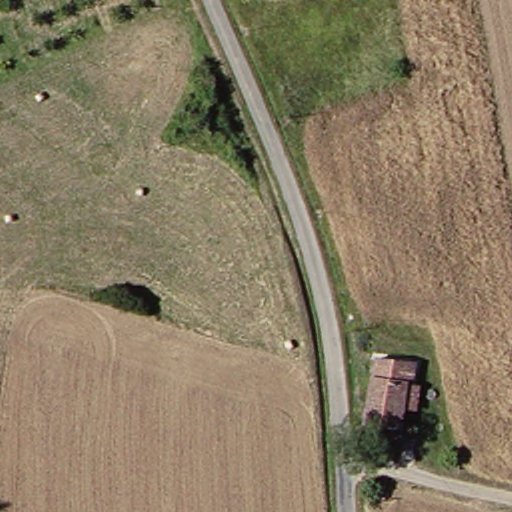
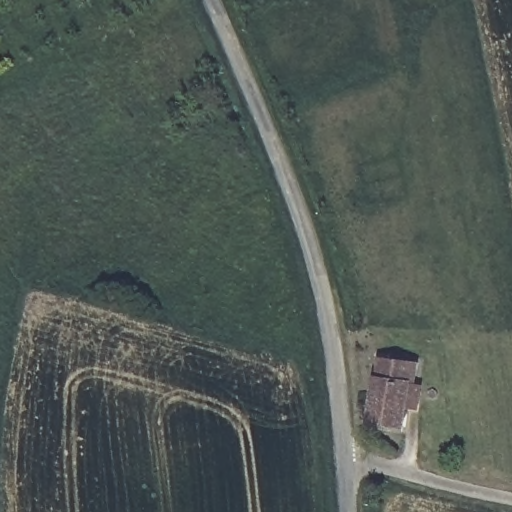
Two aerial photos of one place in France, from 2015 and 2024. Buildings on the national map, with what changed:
unchanged [(357,377),(401,384),(396,431),(364,426),(368,394),(357,393),(357,377)]

